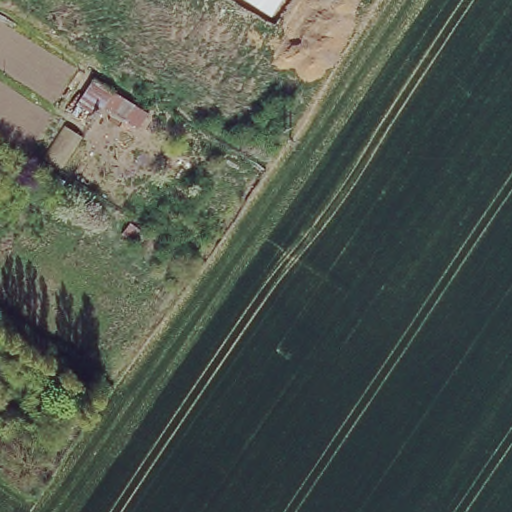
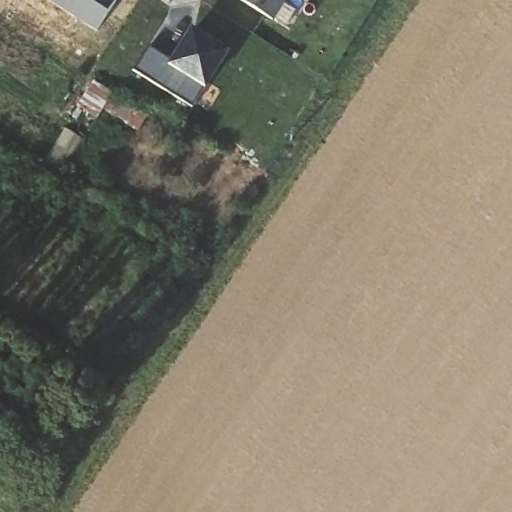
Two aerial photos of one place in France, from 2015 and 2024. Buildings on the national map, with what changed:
new [(96,32),(47,0),(116,0),(96,32)]
unchanged [(272,17),(249,0),(283,0),(272,17)]
new [(229,55),(207,92),(204,87),(193,107),(136,72),(150,49),(171,62),(191,31),(226,53),(229,55)]

